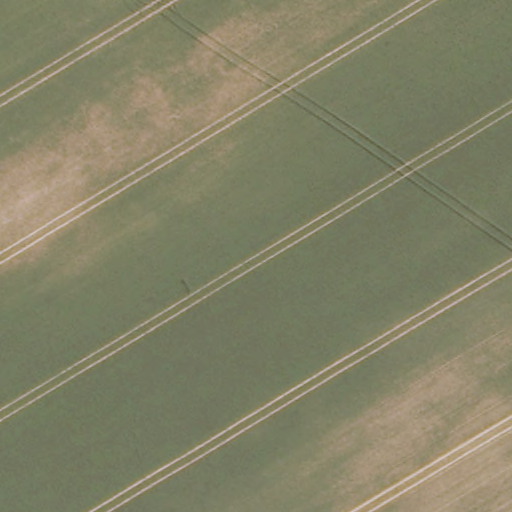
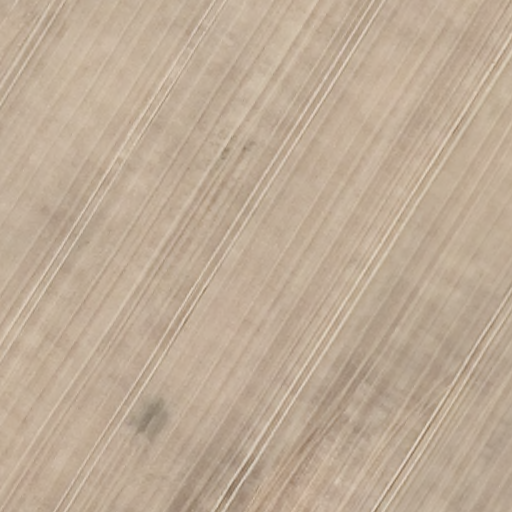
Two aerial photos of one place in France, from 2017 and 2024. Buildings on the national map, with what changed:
unchanged [(484,1),(456,17),(453,12),(449,3),(454,0),(483,0),(484,1)]

